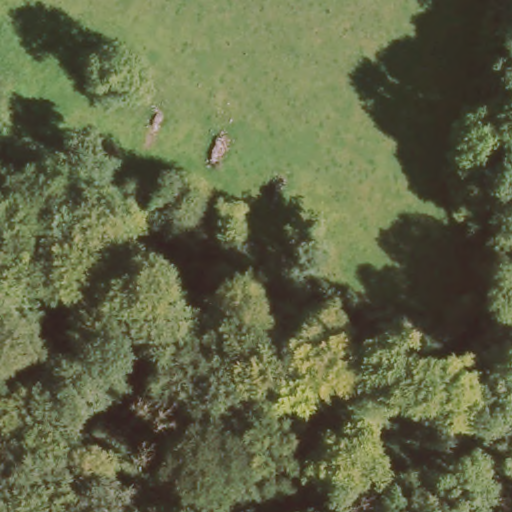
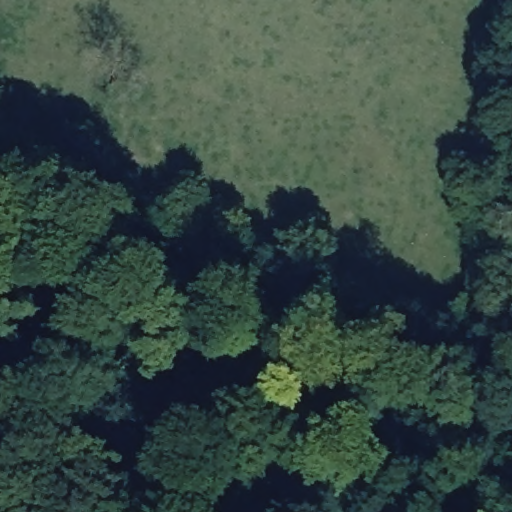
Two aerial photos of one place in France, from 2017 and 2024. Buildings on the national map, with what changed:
[]

